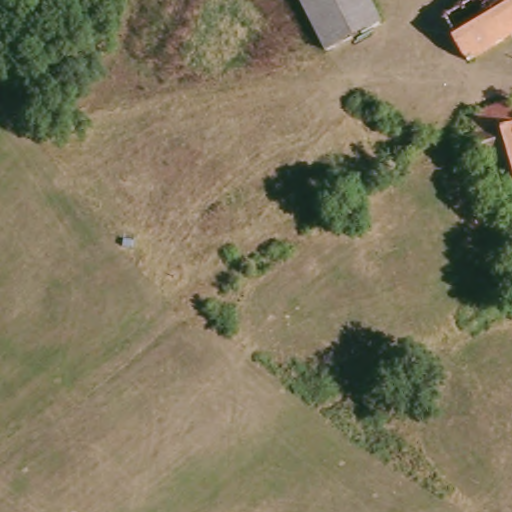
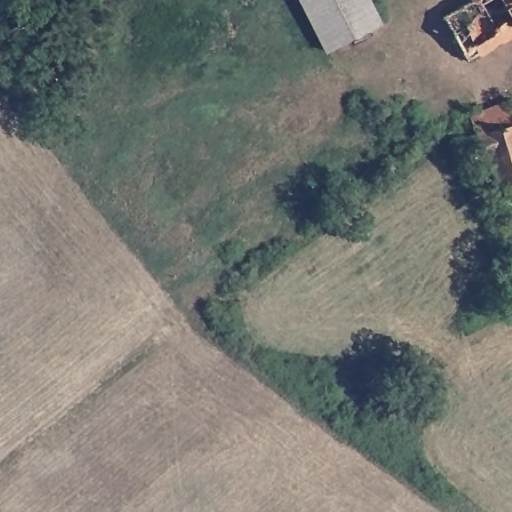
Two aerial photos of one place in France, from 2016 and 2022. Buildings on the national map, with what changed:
unchanged [(376,0),(387,23),(330,52),(304,0),(376,0)]
unchanged [(438,19),(471,0),(512,0),(512,39),(466,67),(438,19)]
unchanged [(500,184),(492,154),(466,161),(460,140),(475,135),(470,121),(512,101),(512,180),(500,184)]

